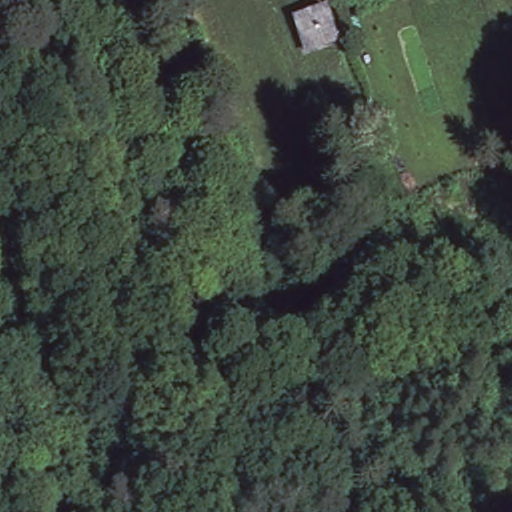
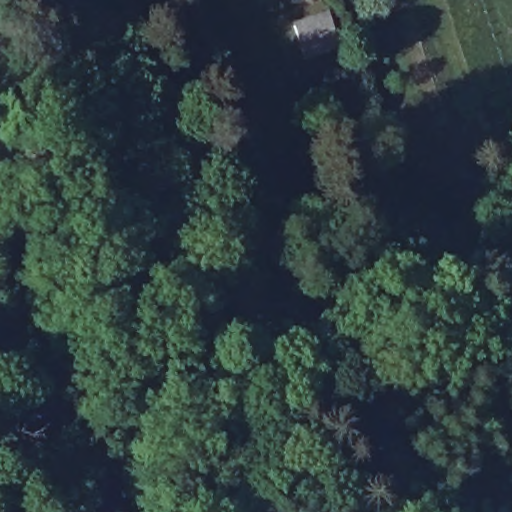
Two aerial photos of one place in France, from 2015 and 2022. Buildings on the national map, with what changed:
unchanged [(323,16),(335,45),(302,57),(290,28),(323,16)]

